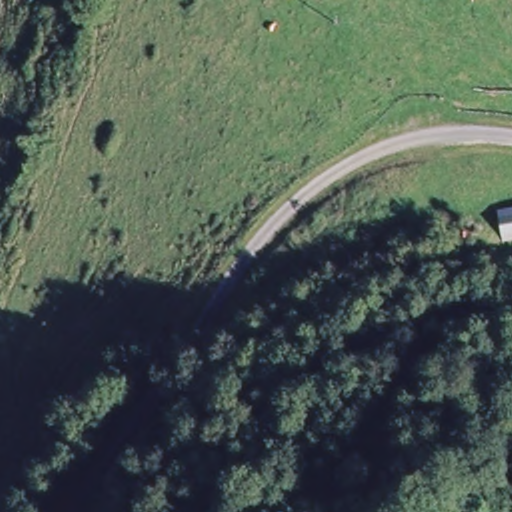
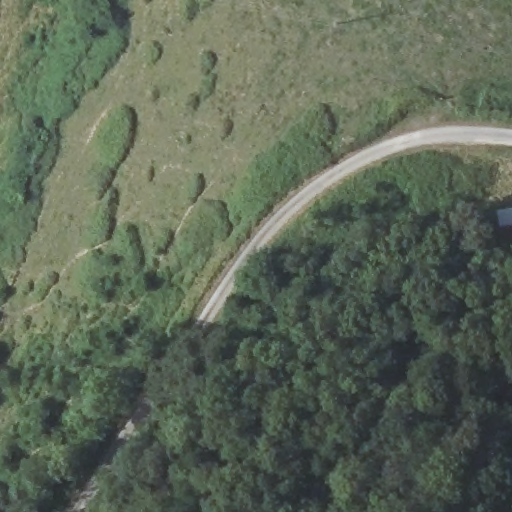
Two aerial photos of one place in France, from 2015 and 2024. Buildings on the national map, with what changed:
unchanged [(497,211),(512,209),(512,239),(502,240),(497,211)]

